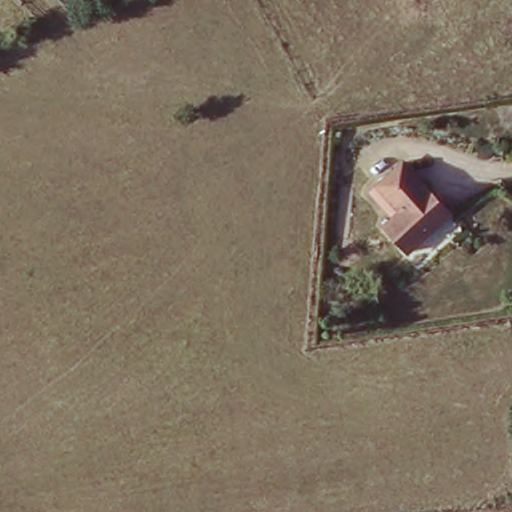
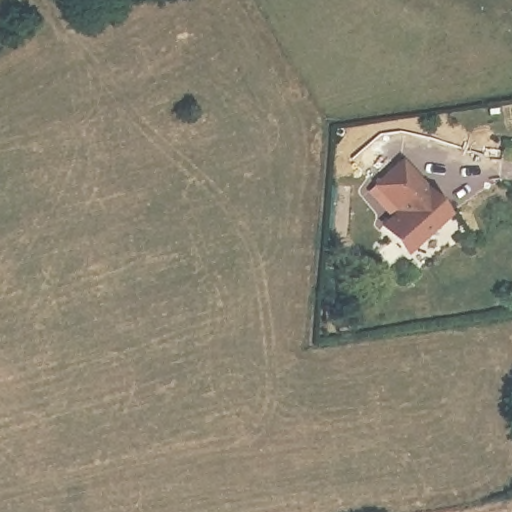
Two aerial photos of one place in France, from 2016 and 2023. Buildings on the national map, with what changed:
unchanged [(455,215),(413,250),(390,228),(407,210),(381,184),(406,164),(455,215)]

